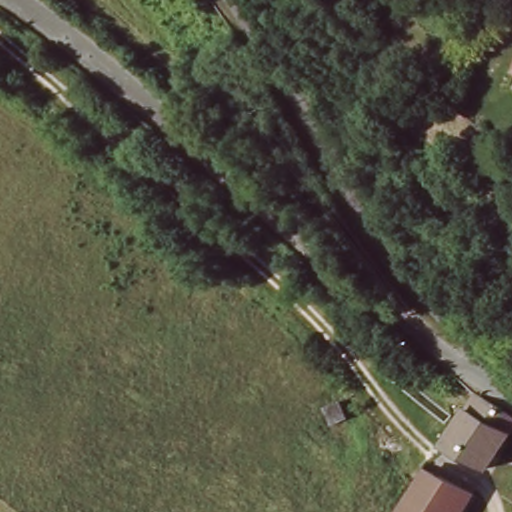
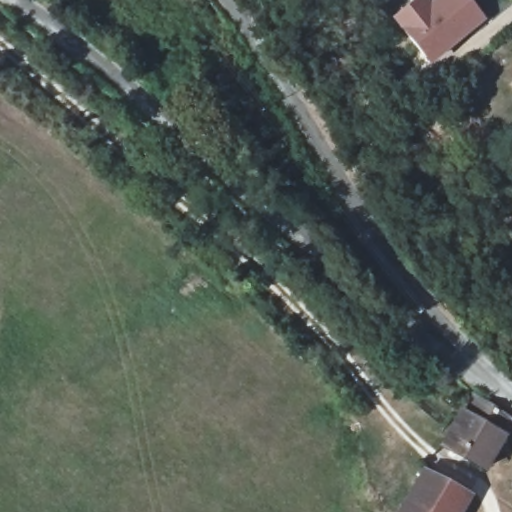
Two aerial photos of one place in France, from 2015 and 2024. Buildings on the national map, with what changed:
new [(428,0),(430,1),(431,0),(471,0),(487,18),(430,65),(390,19),(414,0),(428,0)]
unchanged [(482,472),(442,448),(475,394),(500,410),(512,418),(512,422),(482,472)]
unchanged [(420,476),(415,474),(419,467),(468,494),(457,512),(397,512),(420,476)]

